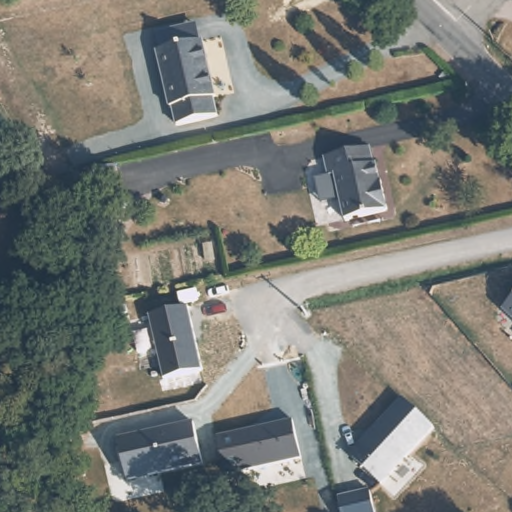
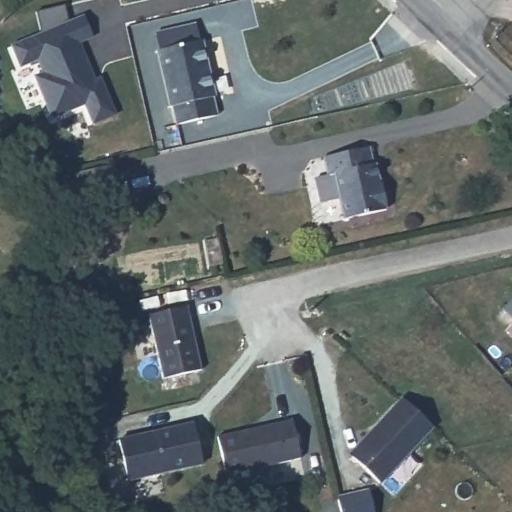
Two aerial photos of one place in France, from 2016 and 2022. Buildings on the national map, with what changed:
new [(41,32),(36,11),(65,4),(69,21),(84,15),(94,37),(81,43),(95,78),(101,76),(118,115),(93,125),(84,105),(52,119),(33,76),(42,72),(37,62),(20,68),(11,44),(41,32)]
unchanged [(161,56),(163,56),(159,39),(198,31),(202,48),(204,47),(218,103),(213,104),(216,122),(182,130),(177,114),(173,116),(161,56)]
unchanged [(328,175),(324,156),(364,146),(368,164),(371,163),(373,178),(378,177),(386,207),(343,217),(333,173),(328,175)]
demolished [(145,170),(151,197),(116,206),(109,179),(145,170)]
unchanged [(512,301),(512,317),(503,310),(512,301)]
unchanged [(188,306),(201,372),(162,380),(150,316),(188,306)]
unchanged [(384,486),(352,453),(402,399),(433,429),(384,486)]
unchanged [(204,465),(130,481),(121,440),(192,423),(204,465)]
unchanged [(295,424),(302,459),(226,480),(218,441),(295,424)]
new [(377,512),(344,512),(340,497),(372,490),(377,512)]

